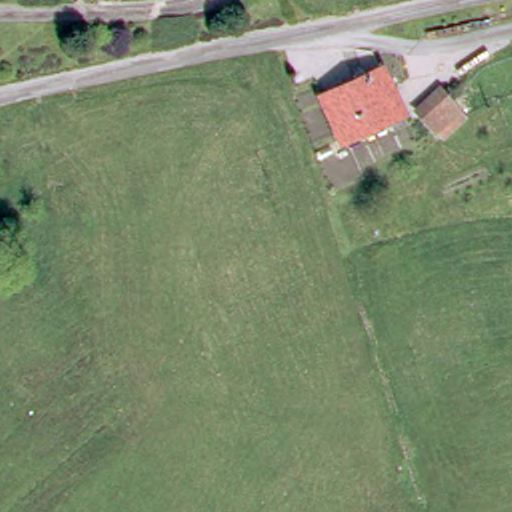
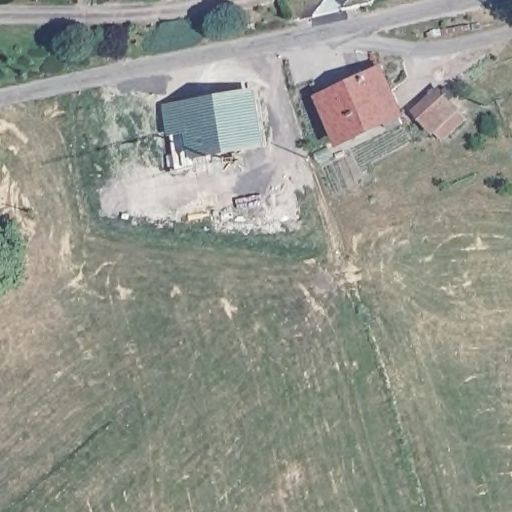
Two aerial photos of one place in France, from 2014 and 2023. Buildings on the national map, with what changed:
unchanged [(338,139),(318,97),(373,70),(394,111),(338,139)]
unchanged [(464,112),(440,139),(411,111),(438,87),(464,112)]
new [(254,92),(263,143),(196,155),(191,128),(171,132),(167,108),(254,92)]

